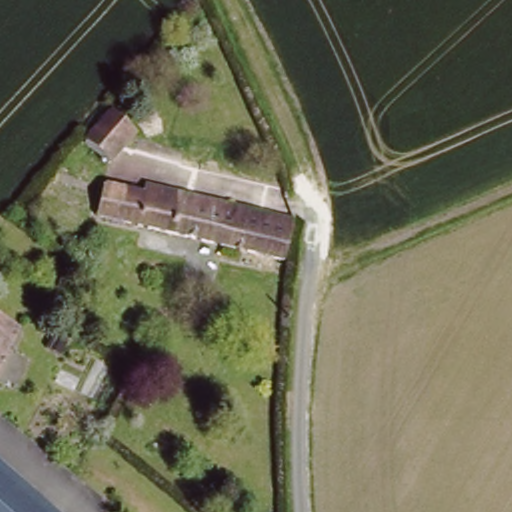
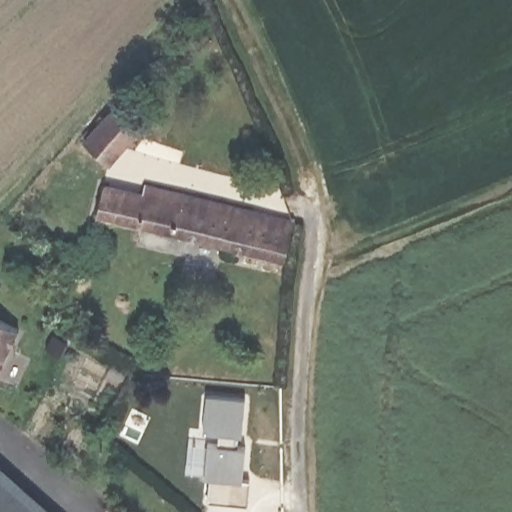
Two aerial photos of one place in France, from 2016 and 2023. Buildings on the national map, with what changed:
unchanged [(140,137),(114,167),(91,147),(116,117),(140,137)]
unchanged [(108,187),(147,198),(150,188),(297,226),(287,266),(100,218),(108,187)]
unchanged [(0,380),(0,317),(24,328),(0,380)]
new [(212,478),(207,477),(209,443),(221,443),(222,431),(206,430),(209,394),(247,396),(244,432),(239,432),(239,444),(247,445),(244,478),(251,479),(250,503),(211,500),(212,478)]
unchanged [(0,471),(9,478),(0,490),(0,471)]
unchanged [(51,512),(0,512),(0,490),(9,478),(51,512)]

